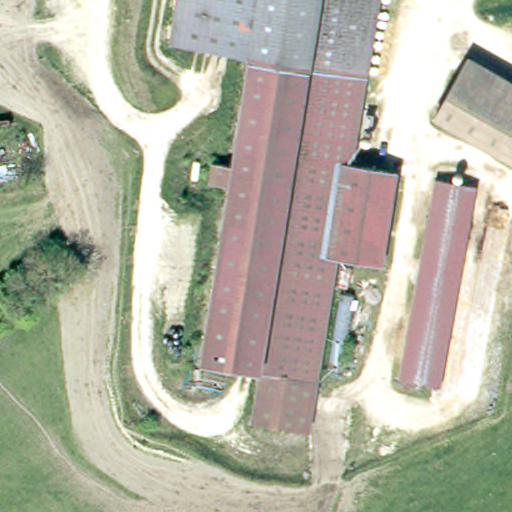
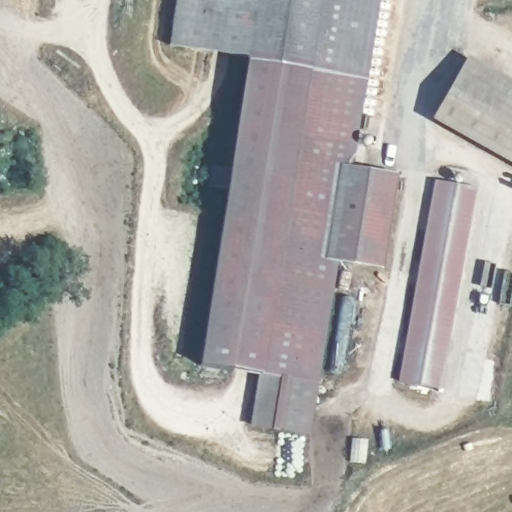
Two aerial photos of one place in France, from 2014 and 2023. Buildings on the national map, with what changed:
unchanged [(227,164),(228,150),(245,52),(165,39),(171,0),(373,0),(362,72),(352,130),(347,163),(391,170),(376,262),(332,255),(308,452),(250,440),(257,378),(195,360),(223,184),(204,181),(207,160),(227,164)]
unchanged [(460,57),(512,88),(512,147),(435,100),(460,57)]
unchanged [(430,379),(393,372),(430,172),(467,179),(430,379)]

